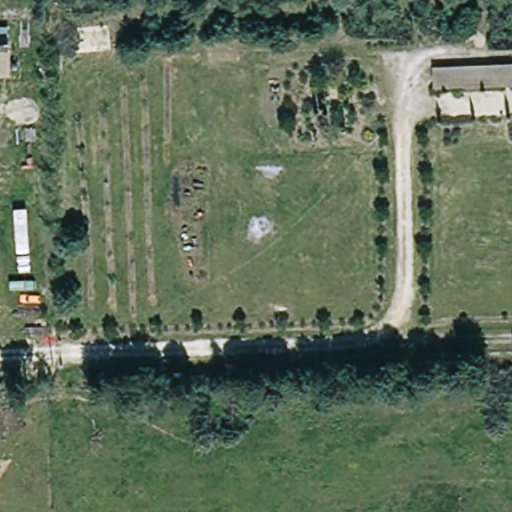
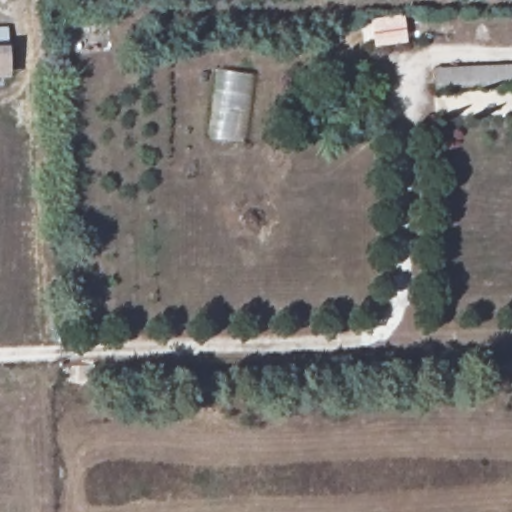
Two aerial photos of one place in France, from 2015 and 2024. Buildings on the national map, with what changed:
unchanged [(0,36),(10,35),(11,80),(0,80),(0,36)]
unchanged [(432,90),(432,67),(512,64),(512,86),(432,90)]
new [(208,137),(215,70),(257,74),(248,142),(208,137)]

